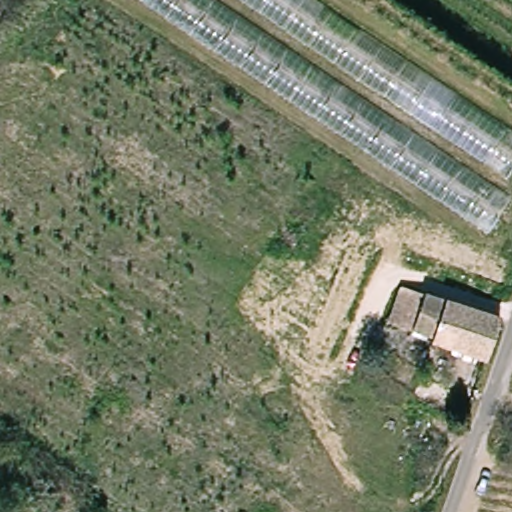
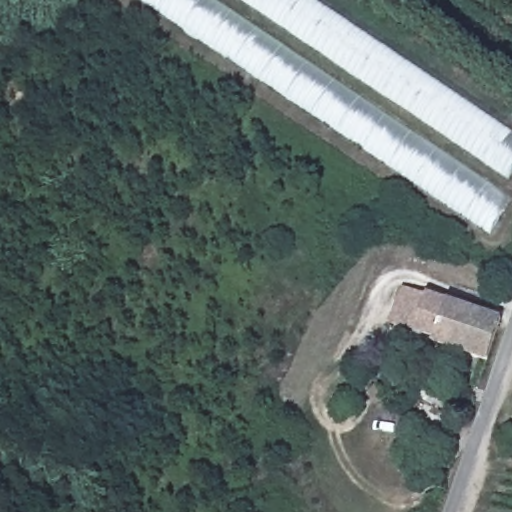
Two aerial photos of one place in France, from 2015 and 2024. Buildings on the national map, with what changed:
unchanged [(495,234),(150,0),(324,0),(512,127),(512,197),(495,234)]
unchanged [(435,337),(413,330),(390,322),(402,288),(425,295),(501,319),(487,360),(432,343),(435,337)]
unchanged [(508,425),(512,427),(512,443),(505,441),(507,434),(508,425)]

